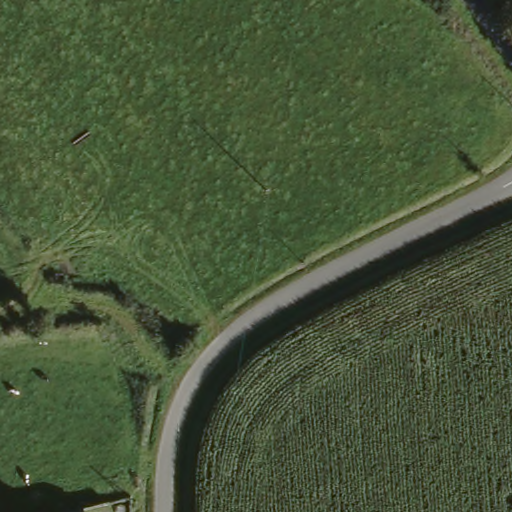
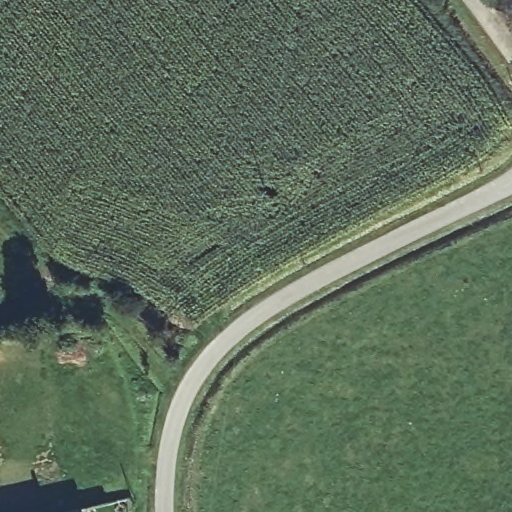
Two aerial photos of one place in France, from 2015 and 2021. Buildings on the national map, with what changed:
unchanged [(79,512),(69,512),(79,509),(79,512)]

